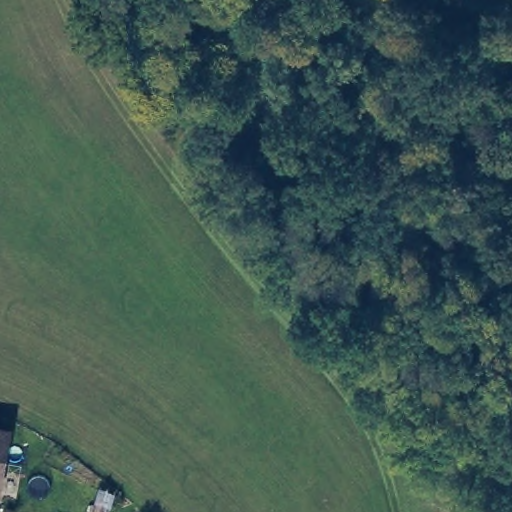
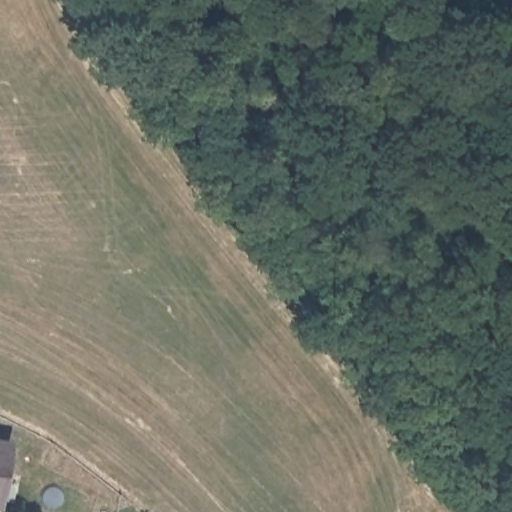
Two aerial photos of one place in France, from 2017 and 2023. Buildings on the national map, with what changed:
unchanged [(0,508),(0,435),(14,437),(0,508)]

